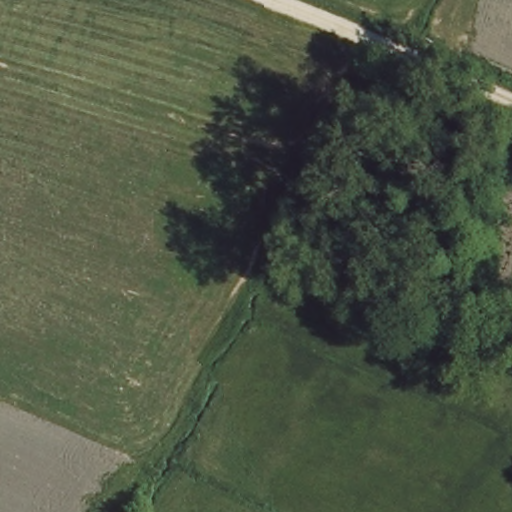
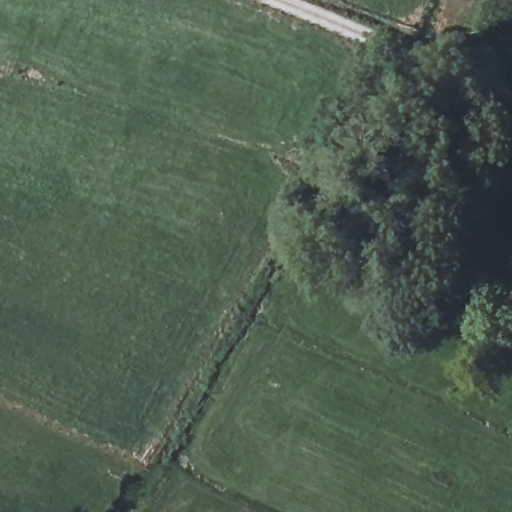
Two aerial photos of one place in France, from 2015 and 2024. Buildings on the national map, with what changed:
[]

